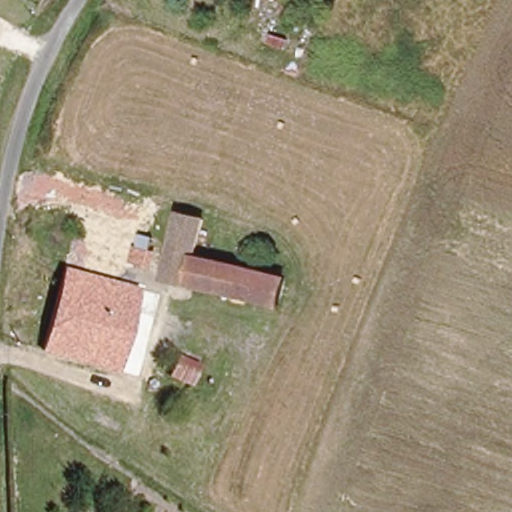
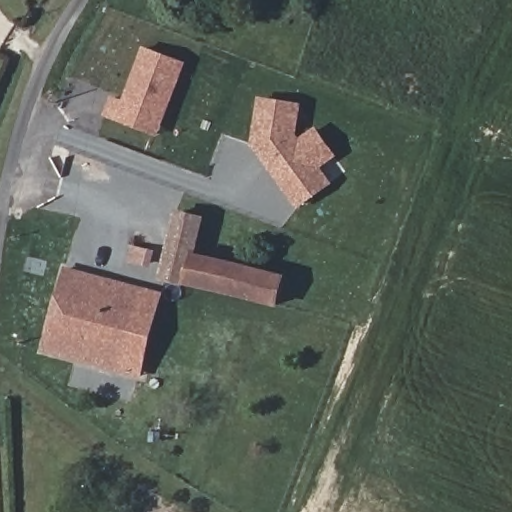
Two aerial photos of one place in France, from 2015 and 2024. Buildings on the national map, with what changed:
new [(159,137),(103,116),(111,94),(124,98),(144,47),(187,63),(159,137)]
new [(260,97),(303,103),(299,134),(302,138),(318,125),(339,155),(323,167),(334,183),(299,209),(252,145),(260,97)]
unchanged [(193,260),(185,284),(159,277),(176,216),(202,223),(214,227),(209,244),(198,241),(195,251),(193,260)]
unchanged [(136,242),(155,248),(149,267),(130,261),(136,242)]
new [(230,296),(238,272),(193,260),(195,251),(287,274),(279,307),(230,296)]
unchanged [(91,274),(143,288),(121,371),(46,348),(70,253),(81,256),(94,259),(91,274)]
unchanged [(193,260),(238,272),(230,296),(185,284),(193,260)]

